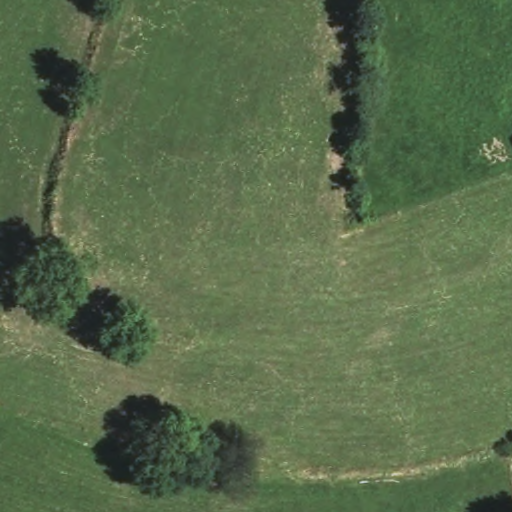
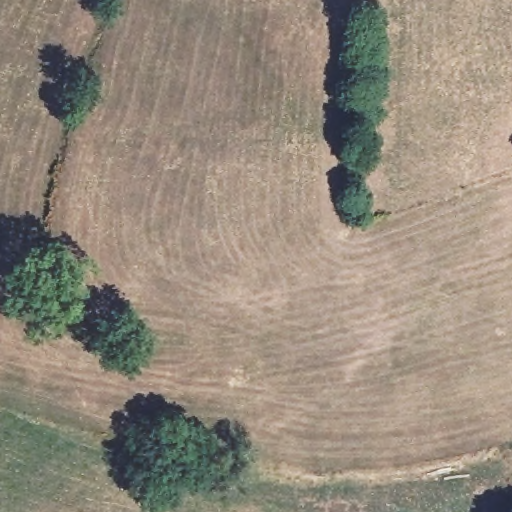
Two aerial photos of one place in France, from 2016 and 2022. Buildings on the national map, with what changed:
[]

